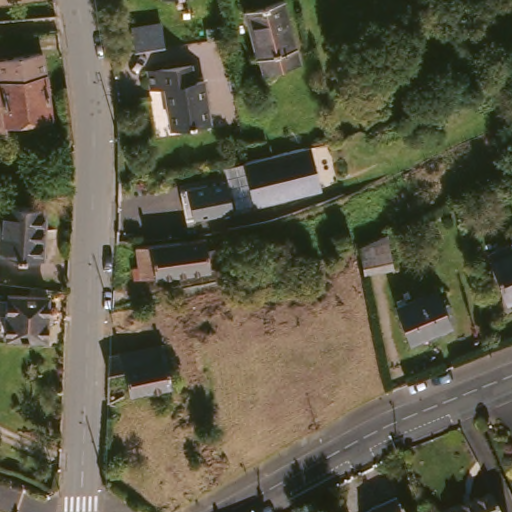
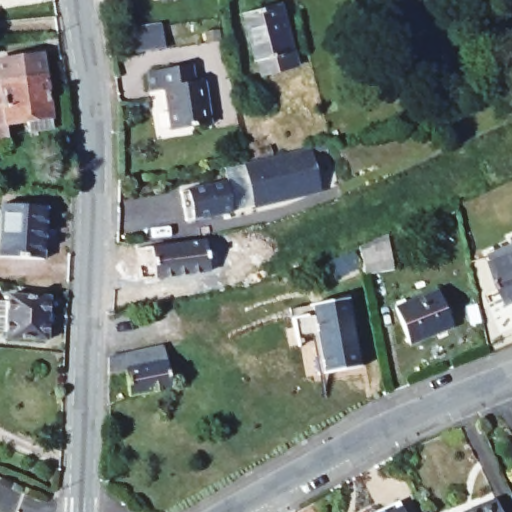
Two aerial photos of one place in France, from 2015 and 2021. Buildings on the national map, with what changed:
unchanged [(281,4),(285,3),(302,64),(266,74),(262,59),(258,60),(245,13),(281,4)]
new [(163,28),(167,50),(134,55),(131,33),(163,28)]
unchanged [(0,140),(0,81),(5,80),(3,60),(5,60),(51,54),(59,119),(55,119),(56,126),(34,130),(33,124),(41,123),(41,121),(41,118),(33,120),(10,123),(13,139),(7,139),(0,140)]
unchanged [(166,67),(196,63),(199,79),(210,78),(217,122),(175,128),(168,87),(154,89),(151,69),(166,67)]
unchanged [(303,150),(316,192),(251,209),(241,164),(303,150)]
unchanged [(219,182),(226,213),(183,222),(175,189),(219,182)]
unchanged [(45,258),(0,256),(0,215),(1,201),(47,203),(45,258)]
unchanged [(367,244),(389,234),(398,269),(368,273),(362,246),(367,244)]
unchanged [(227,267),(216,269),(145,278),(145,274),(140,274),(139,265),(143,264),(141,246),(174,242),(211,238),(213,249),(224,248),(227,267)]
unchanged [(512,248),(512,304),(492,256),(512,248)]
unchanged [(52,310),(64,312),(64,320),(51,319),(51,338),(12,337),(12,331),(0,331),(0,299),(11,299),(11,294),(50,295),(53,295),(52,310)]
unchanged [(401,304),(409,300),(411,305),(438,295),(442,294),(453,327),(411,342),(399,309),(401,309),(400,304),(401,304)]
new [(359,365),(323,374),(315,334),(296,338),(294,319),(312,315),(311,306),(347,298),(359,365)]
unchanged [(133,350),(145,348),(170,343),(172,352),(178,384),(133,393),(129,368),(113,371),(114,354),(133,350)]
unchanged [(475,509),(478,507),(476,503),(501,493),(508,512),(465,512),(475,509)]
unchanged [(378,511),(402,498),(408,512),(378,512),(378,511)]

